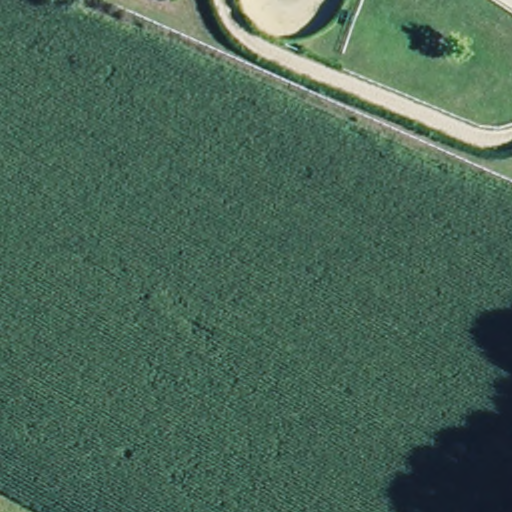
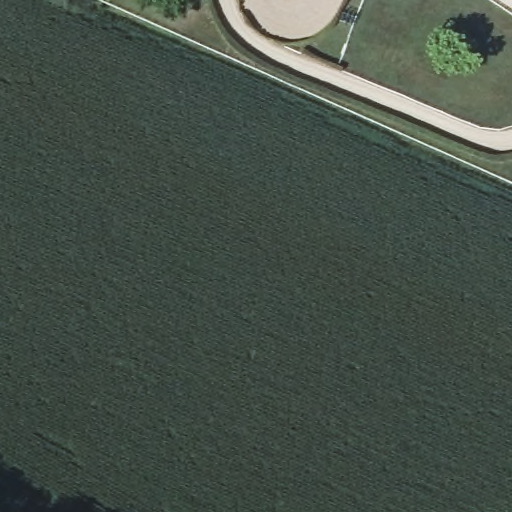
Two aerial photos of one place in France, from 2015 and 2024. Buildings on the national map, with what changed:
[]

